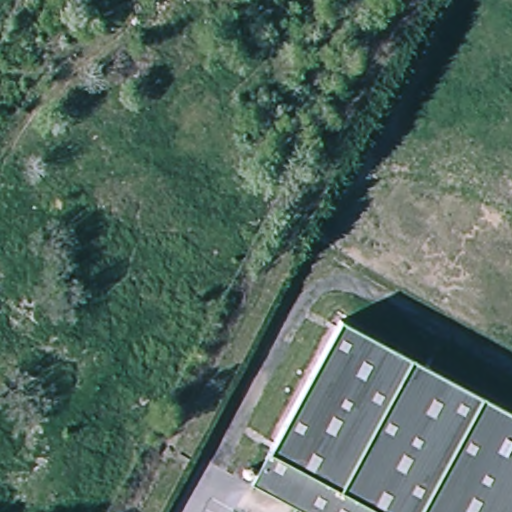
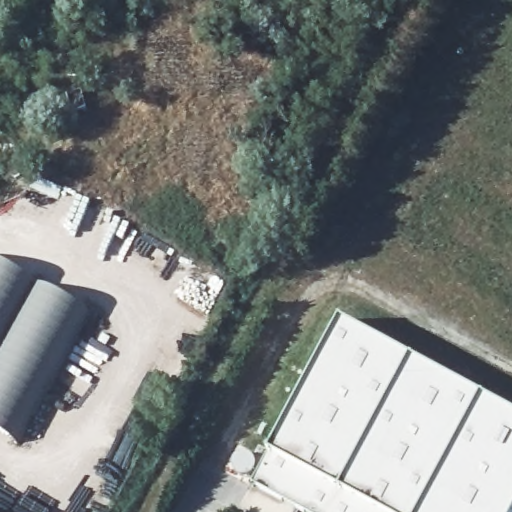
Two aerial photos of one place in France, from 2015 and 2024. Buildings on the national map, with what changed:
new [(22,448),(0,436),(0,266),(90,315),(22,448)]
unchanged [(340,323),(512,413),(512,512),(297,512),(252,487),(255,483),(334,335),(340,323)]

